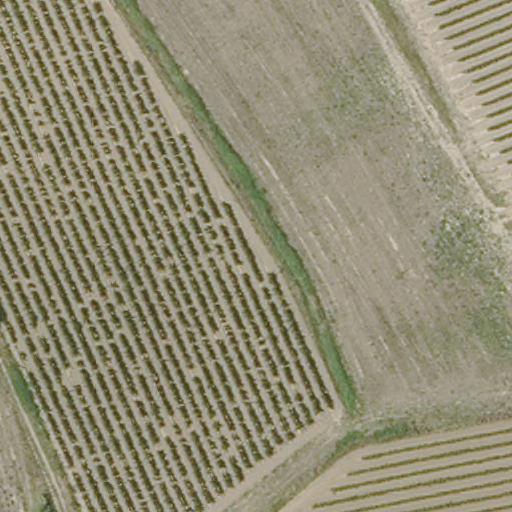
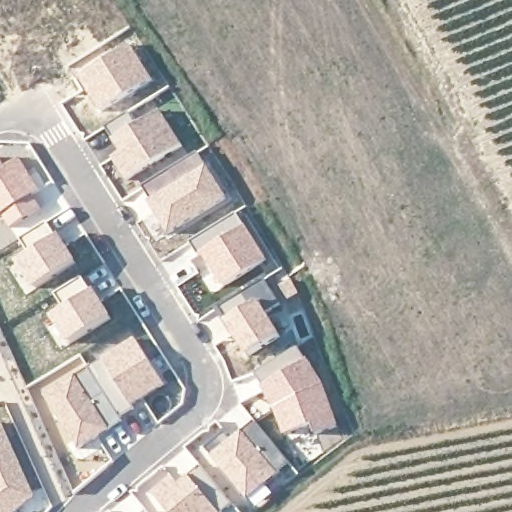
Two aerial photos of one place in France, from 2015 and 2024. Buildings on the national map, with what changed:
new [(130,40),(157,82),(99,116),(74,77),(130,40)]
new [(130,111),(137,122),(160,107),(183,148),(126,182),(110,156),(117,151),(105,127),(130,111)]
new [(199,151),(229,200),(167,237),(139,190),(199,151)]
new [(45,210),(10,229),(1,216),(0,216),(0,156),(1,156),(7,164),(20,155),(42,187),(44,191),(37,195),(45,210)]
new [(237,211),(270,260),(222,288),(197,253),(190,242),(237,211)]
new [(20,237),(49,220),(60,235),(79,262),(27,294),(10,267),(30,253),(20,237)]
new [(55,295),(82,276),(95,291),(114,317),(68,346),(49,320),(64,309),(55,295)]
new [(266,278),(284,305),(270,315),(284,335),(250,358),(225,323),(229,322),(219,307),(266,278)]
new [(89,366),(134,336),(165,385),(144,399),(111,428),(76,373),(89,366)]
new [(299,346),(322,382),(340,425),(317,435),(312,426),(285,435),(254,373),(299,346)]
new [(76,373),(111,428),(77,452),(44,398),(42,395),(76,373)]
new [(290,463),(280,473),(243,428),(255,420),(290,463)]
new [(34,498),(16,512),(0,512),(0,425),(34,498)]
new [(233,441),(245,431),(280,473),(249,502),(208,452),(227,433),(233,441)]
new [(173,475),(179,482),(190,474),(220,512),(165,512),(159,504),(150,493),(173,475)]

